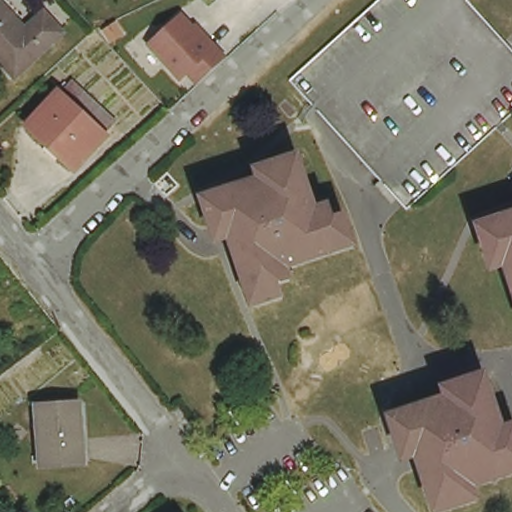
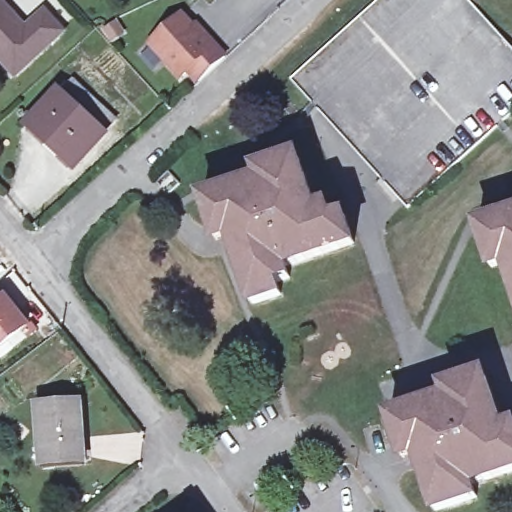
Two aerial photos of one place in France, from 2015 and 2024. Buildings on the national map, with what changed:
unchanged [(0,0),(8,0),(26,18),(42,1),(62,21),(18,65),(0,48),(0,0)]
unchanged [(217,63),(199,80),(187,68),(180,74),(150,41),(181,13),(210,44),(212,42),(225,55),(217,63)]
unchanged [(30,124),(58,90),(104,129),(75,163),(30,124)]
unchanged [(216,239),(202,197),(260,177),(256,166),(269,161),(270,166),(297,157),(315,207),(329,202),(334,215),(345,212),(355,240),(287,263),(291,274),(280,279),(283,289),(253,300),(230,234),(216,239)]
unchanged [(507,260),(493,264),(480,224),(512,212),(512,274),(507,260)]
new [(6,295),(32,326),(0,352),(0,293),(3,296),(6,295)]
unchanged [(402,446),(389,404),(445,386),(442,377),(457,372),(458,375),(486,367),(510,439),(512,439),(512,470),(473,483),(477,495),(438,508),(416,442),(402,446)]
unchanged [(83,401),(86,456),(44,459),(40,403),(83,401)]

